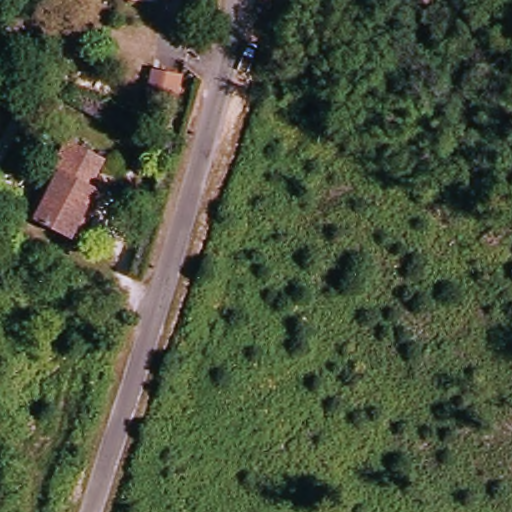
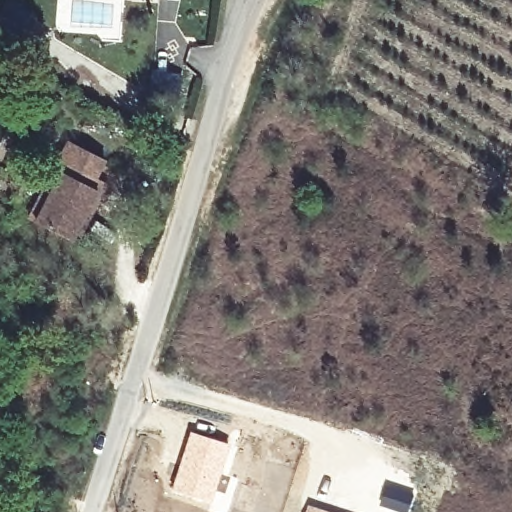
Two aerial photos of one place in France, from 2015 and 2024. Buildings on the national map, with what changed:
unchanged [(10,0),(33,12),(11,49),(0,44),(0,7),(4,0),(10,0)]
unchanged [(181,77),(176,105),(146,99),(151,71),(181,77)]
unchanged [(49,195),(74,147),(110,167),(104,182),(97,192),(105,199),(78,250),(41,230),(32,226),(49,195)]
new [(189,430),(231,443),(210,503),(169,490),(189,430)]
new [(387,481),(415,490),(409,512),(399,512),(379,506),(387,481)]
new [(308,506),(329,512),(306,512),(308,506)]

